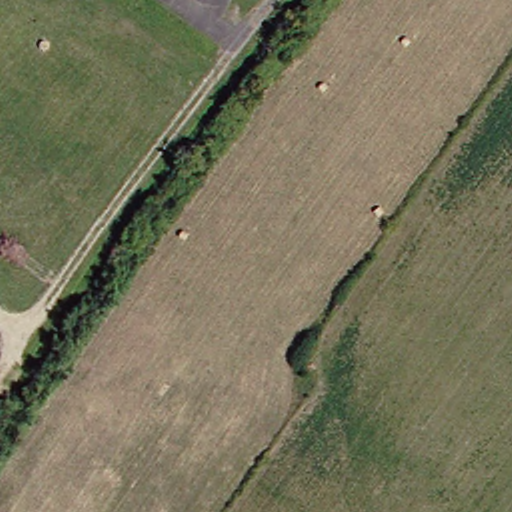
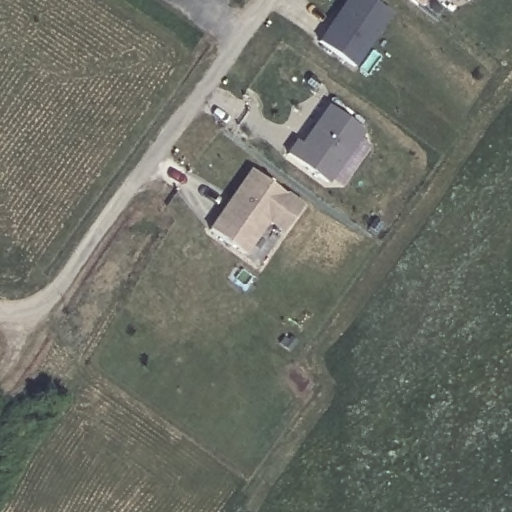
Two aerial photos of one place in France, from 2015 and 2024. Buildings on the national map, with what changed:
new [(345,0),(366,0),(387,14),(350,69),(314,44),(345,0)]
new [(415,8),(404,0),(421,0),(415,8)]
new [(293,138),(299,142),(325,105),(364,131),(327,182),(284,153),(293,138)]
new [(244,255),(205,228),(249,168),(302,203),(282,233),(267,224),(244,255)]

